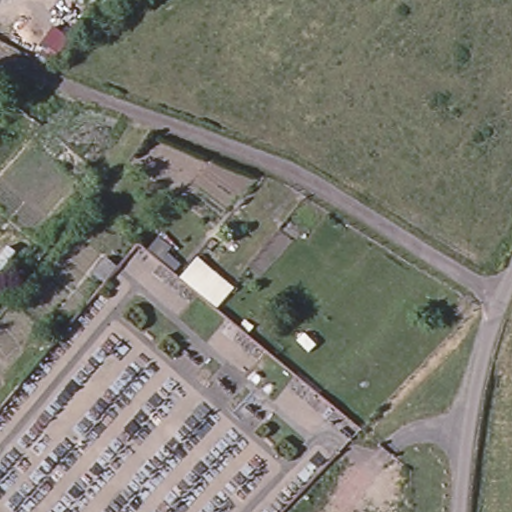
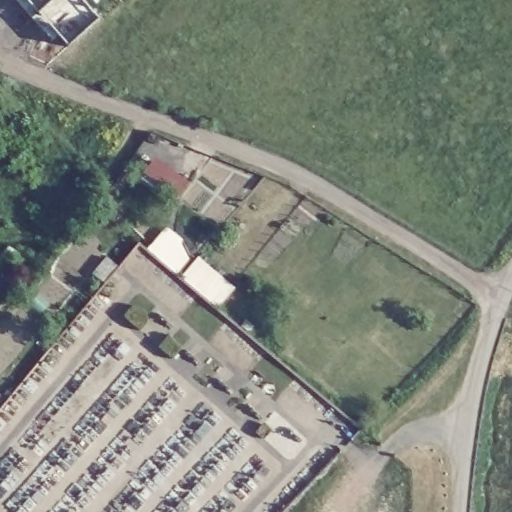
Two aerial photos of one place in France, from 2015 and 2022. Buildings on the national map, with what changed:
unchanged [(45,47),(60,54),(48,65),(36,60),(45,47)]
unchanged [(161,232),(175,240),(169,251),(189,265),(198,256),(235,287),(218,306),(149,249),(161,232)]

